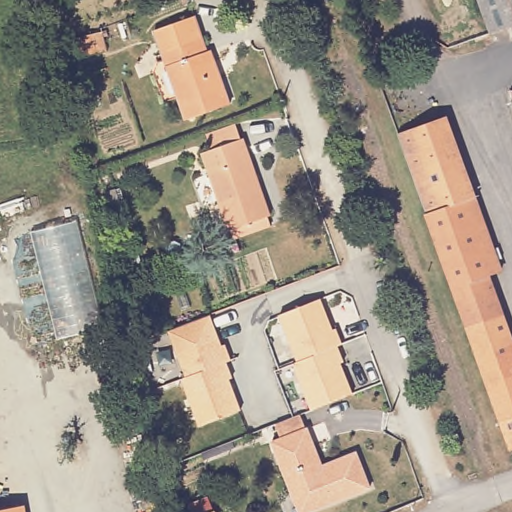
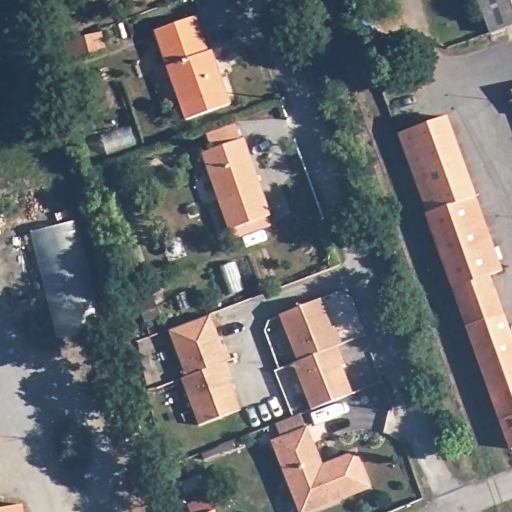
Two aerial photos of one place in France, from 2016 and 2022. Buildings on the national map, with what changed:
unchanged [(482,0),(512,0),(512,27),(494,34),(482,0)]
unchanged [(206,53),(210,52),(229,105),(186,121),(153,31),(193,17),(206,53)]
unchanged [(89,56),(69,62),(64,44),(84,37),(89,56)]
unchanged [(512,89),(512,102),(508,90),(512,89)]
unchanged [(397,135),(444,117),(499,271),(487,275),(452,287),(397,135)]
unchanged [(233,239),(230,230),(228,231),(203,154),(243,141),(269,217),(266,219),(269,227),(233,239)]
unchanged [(124,214),(114,217),(106,193),(115,189),(124,214)]
unchanged [(32,231),(75,221),(104,327),(59,339),(32,231)]
unchanged [(140,278),(126,283),(120,263),(135,260),(140,278)]
unchanged [(487,275),(500,313),(466,326),(452,287),(487,275)]
unchanged [(161,320),(140,327),(132,302),(152,295),(161,320)]
unchanged [(330,331),(334,329),(340,345),(335,347),(341,362),(338,363),(351,394),(310,411),(291,365),(296,362),(277,316),(318,300),(330,331)]
unchanged [(512,347),(512,449),(510,450),(466,326),(500,313),(512,347)]
unchanged [(219,346),(222,345),(228,361),(224,362),(229,377),(226,379),(238,410),(197,426),(179,378),(184,377),(166,331),(166,330),(208,315),(219,346)]
unchanged [(275,420),(300,410),(306,423),(321,462),(355,448),(369,482),(300,510),(271,437),(281,433),(275,420)]
unchanged [(0,512),(0,511),(24,507),(24,512),(0,512)]

